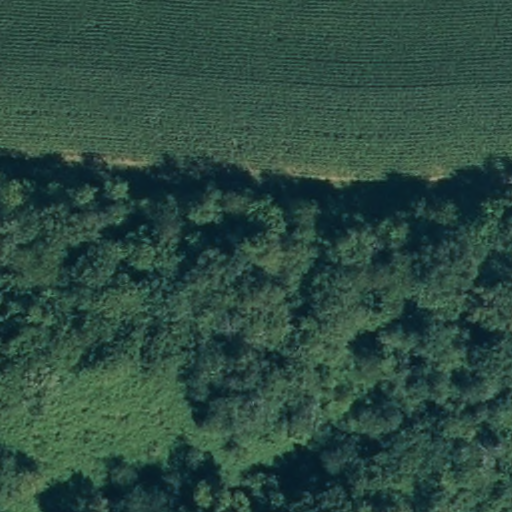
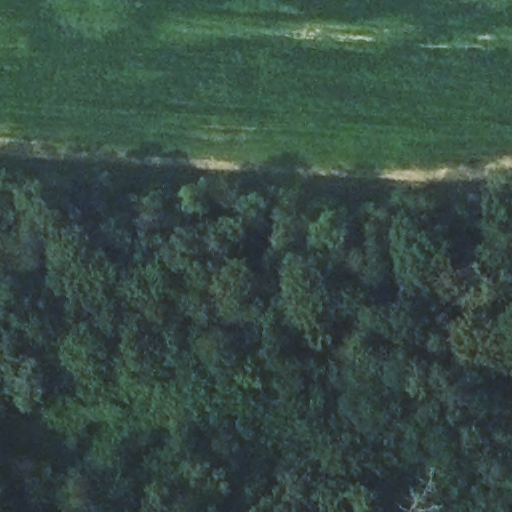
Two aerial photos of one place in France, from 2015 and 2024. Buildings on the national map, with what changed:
unchanged [(282,202),(265,201),(265,187),(282,189),(282,202)]

